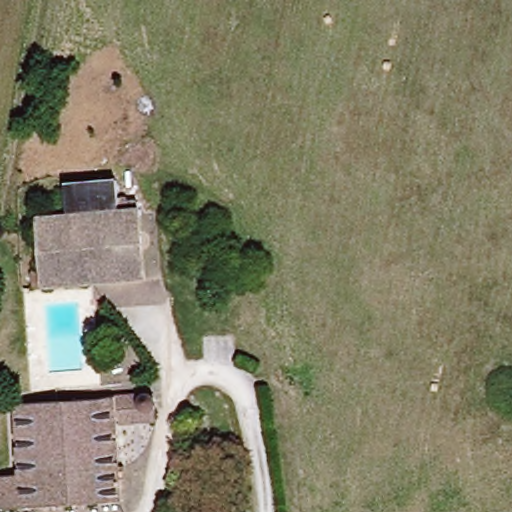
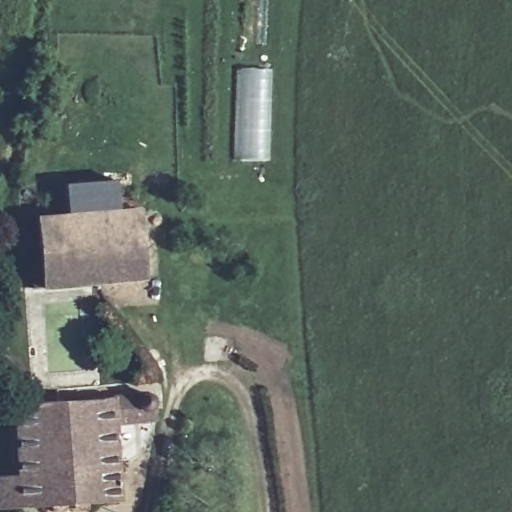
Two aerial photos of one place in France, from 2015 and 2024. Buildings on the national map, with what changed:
new [(235,67),(271,68),(269,160),(233,159),(235,67)]
unchanged [(155,265),(142,266),(143,282),(31,286),(30,270),(40,270),(40,217),(66,216),(66,184),(120,183),(120,198),(139,198),(139,212),(140,221),(153,221),(155,265)]
unchanged [(21,474),(17,402),(155,396),(156,422),(116,424),(120,496),(0,502),(0,475),(21,474)]

